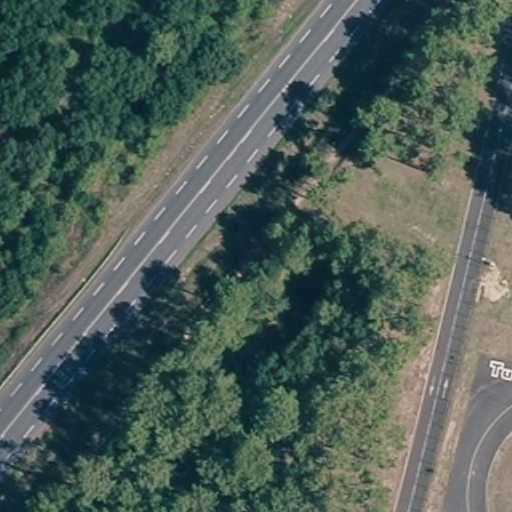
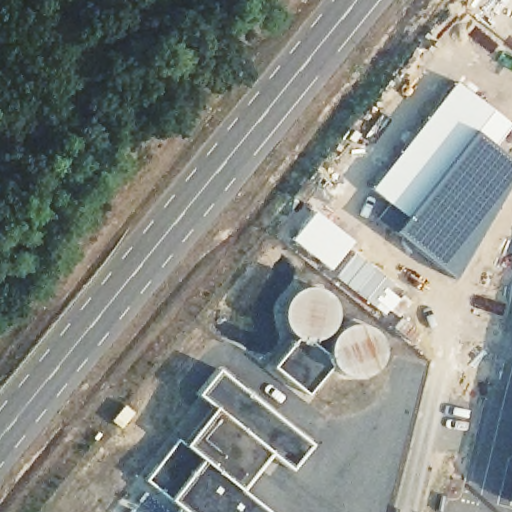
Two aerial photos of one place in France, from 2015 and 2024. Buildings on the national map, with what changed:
new [(423,119),(456,80),(511,124),(495,145),(473,130),(402,216),(368,188),(423,119)]
new [(402,216),(473,130),(495,145),(512,159),(512,185),(477,241),(452,278),(391,230),(402,216)]
new [(316,209),(355,241),(331,270),(291,239),(316,209)]
new [(355,252),(396,284),(392,288),(403,298),(385,318),(335,277),(355,252)]
new [(276,367),(299,338),(302,339),(335,366),(312,394),(276,367)]
new [(180,439),(188,445),(217,407),(200,394),(220,370),(314,446),(293,469),(274,453),(244,490),(272,512),(189,512),(173,499),(149,481),(180,439)]

